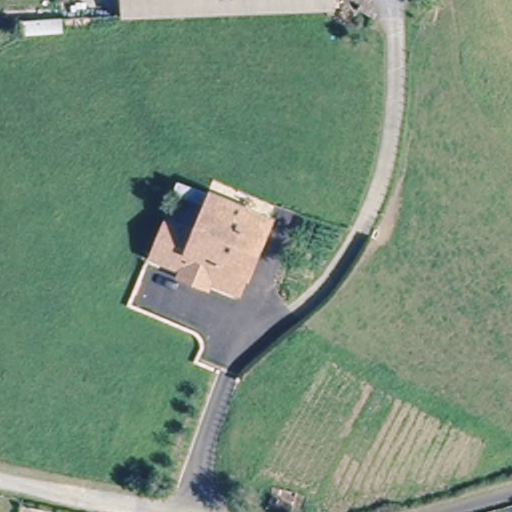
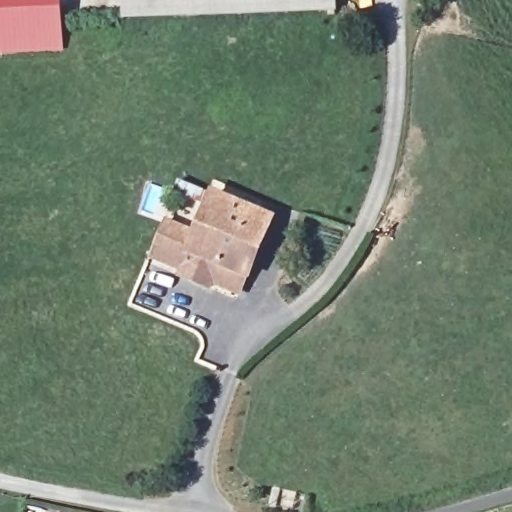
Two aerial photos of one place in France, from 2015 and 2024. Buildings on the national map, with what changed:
new [(64,51),(0,54),(0,0),(61,0),(64,51)]
unchanged [(122,25),(121,0),(339,0),(340,10),(122,25)]
unchanged [(287,227),(274,260),(268,258),(244,249),(239,262),(227,292),(171,270),(201,195),(216,201),(231,206),(233,200),(260,210),(257,216),(280,225),(287,227)]

